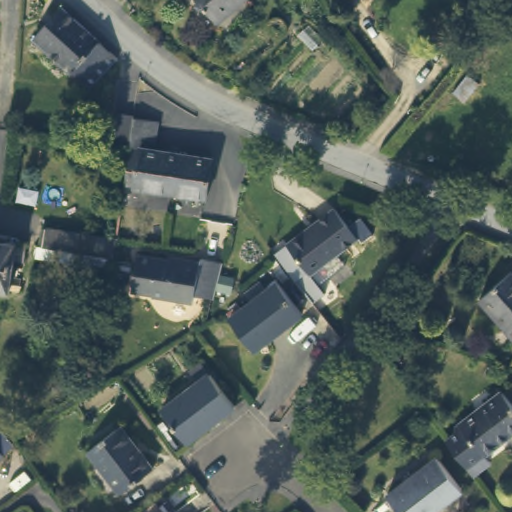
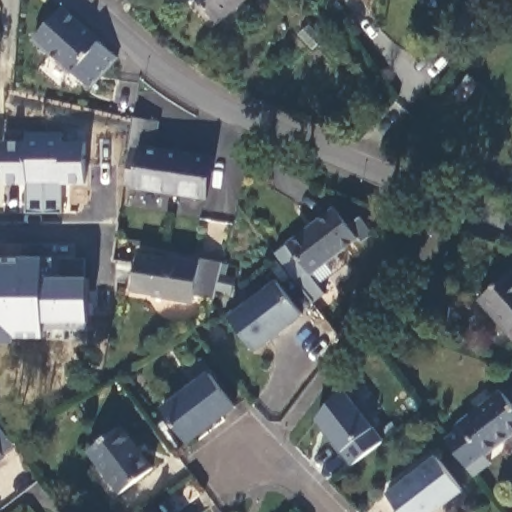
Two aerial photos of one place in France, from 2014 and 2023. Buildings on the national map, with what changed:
unchanged [(250,0),(248,1),(221,22),(202,0),(250,0)]
unchanged [(92,89),(40,38),(66,9),(67,6),(106,43),(106,44),(110,48),(121,59),(101,80),(92,89)]
unchanged [(221,201),(181,194),(152,189),(152,187),(140,186),(146,149),(150,124),(174,127),(170,152),(228,160),(221,201)]
new [(85,182),(2,181),(2,139),(85,141),(85,182)]
unchanged [(358,234),(340,249),(350,261),(320,282),(311,270),(310,271),(287,240),(335,203),(358,234)]
demolished [(13,286),(0,285),(0,238),(9,239),(17,240),(13,286)]
unchanged [(190,301),(130,289),(139,250),(199,262),(200,256),(224,260),(216,287),(213,300),(192,295),(190,301)]
new [(43,255),(46,274),(90,276),(88,321),(44,320),(41,336),(0,336),(0,256),(43,255)]
unchanged [(512,275),(512,328),(485,297),(512,275)]
unchanged [(257,346),(233,315),(281,278),(305,311),(257,346)]
unchanged [(190,440),(165,407),(202,380),(194,368),(206,358),(239,404),(190,440)]
new [(350,466),(340,452),(316,419),(342,386),(355,402),(359,400),(378,426),(375,430),(384,440),(350,466)]
unchanged [(458,427),(500,395),(512,411),(512,435),(485,456),(490,465),(474,477),(447,442),(460,431),(458,427)]
unchanged [(115,492),(95,465),(104,457),(94,443),(125,420),(156,462),(115,492)]
unchanged [(6,451),(0,455),(0,443),(6,451)]
unchanged [(461,484),(447,495),(449,498),(431,512),(406,512),(391,492),(440,455),(461,484)]
unchanged [(172,512),(171,512),(171,511),(172,512)]

